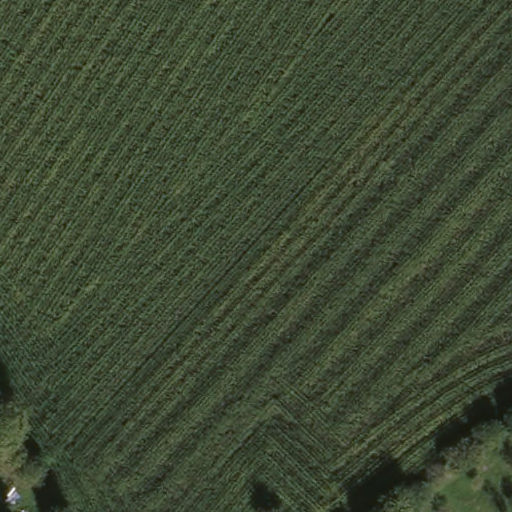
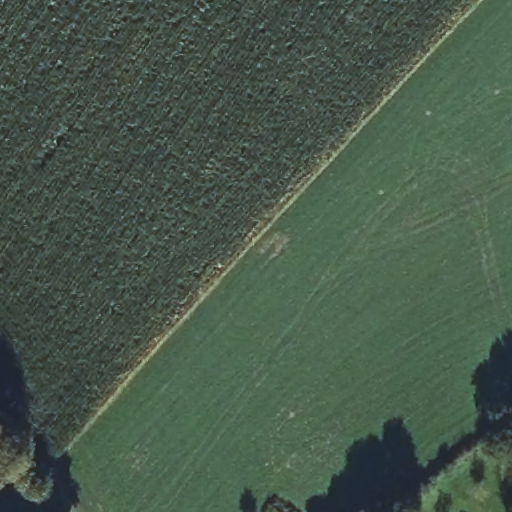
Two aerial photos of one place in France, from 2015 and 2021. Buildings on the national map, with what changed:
[]

